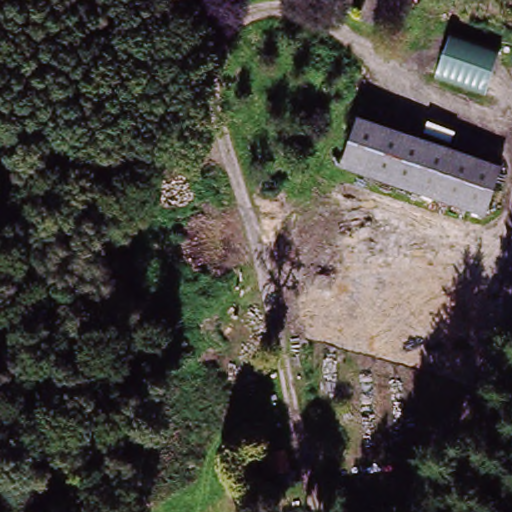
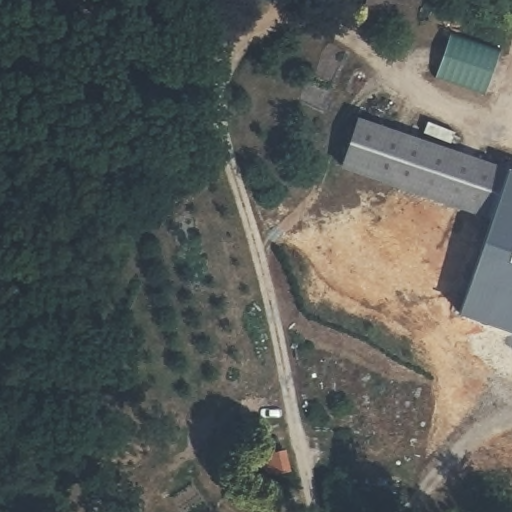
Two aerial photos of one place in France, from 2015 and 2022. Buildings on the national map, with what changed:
unchanged [(360,34),(364,0),(393,0),(388,37),(360,34)]
unchanged [(447,36),(499,51),(487,95),(434,79),(447,36)]
unchanged [(385,185),(339,170),(355,117),(386,129),(501,171),(485,217),(385,185)]
new [(505,173),(507,167),(512,169),(512,331),(457,312),(490,220),(485,217),(501,171),(505,173)]

